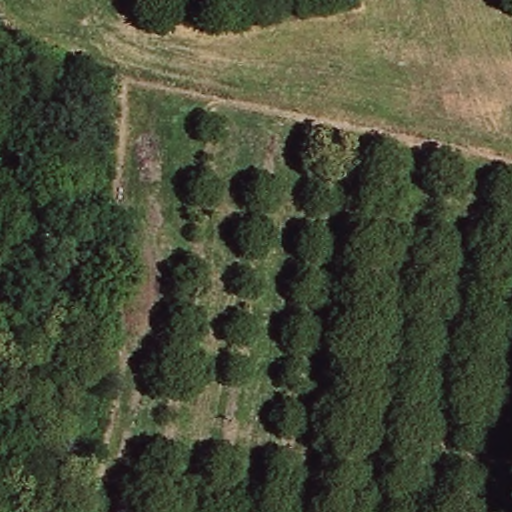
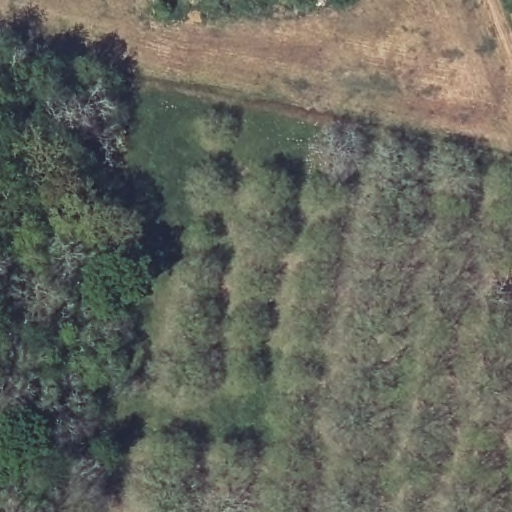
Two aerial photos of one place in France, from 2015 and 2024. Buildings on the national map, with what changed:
[]

